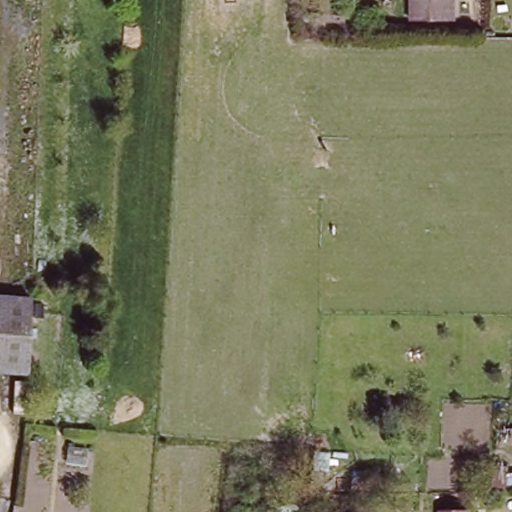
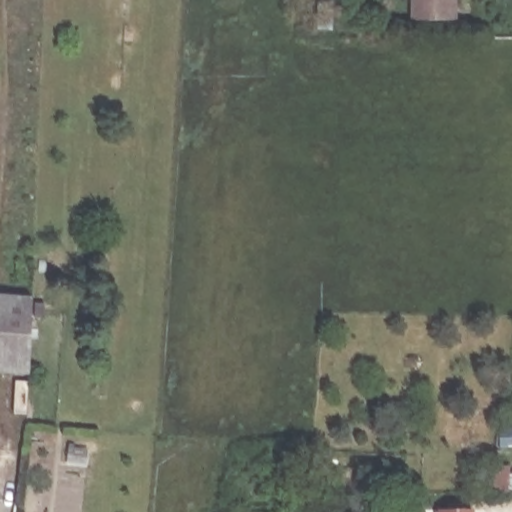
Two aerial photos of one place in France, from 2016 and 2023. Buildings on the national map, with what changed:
unchanged [(414,0),(456,0),(457,22),(414,22),(414,0)]
unchanged [(28,373),(0,371),(0,296),(30,298),(28,373)]
unchanged [(509,492),(493,492),(492,468),(499,467),(508,467),(509,492)]
unchanged [(477,512),(445,512),(444,511),(477,510),(477,512)]

